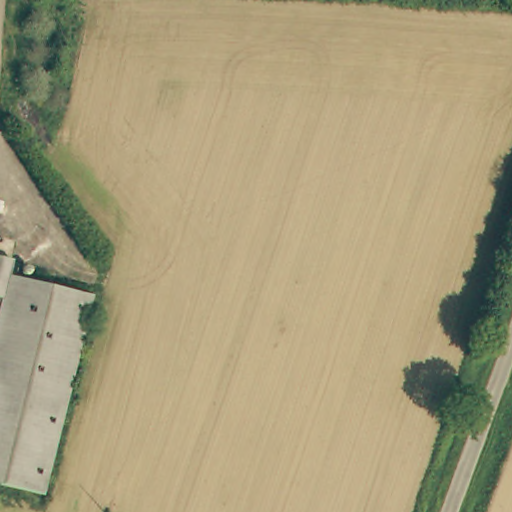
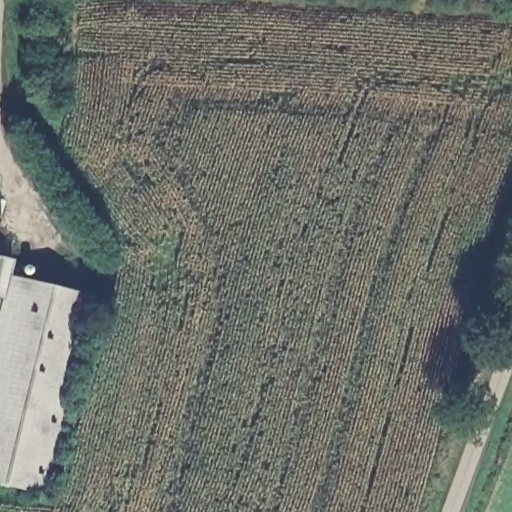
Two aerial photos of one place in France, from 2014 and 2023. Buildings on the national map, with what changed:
unchanged [(7,260),(4,274),(87,296),(35,495),(0,486),(0,258),(7,260)]

